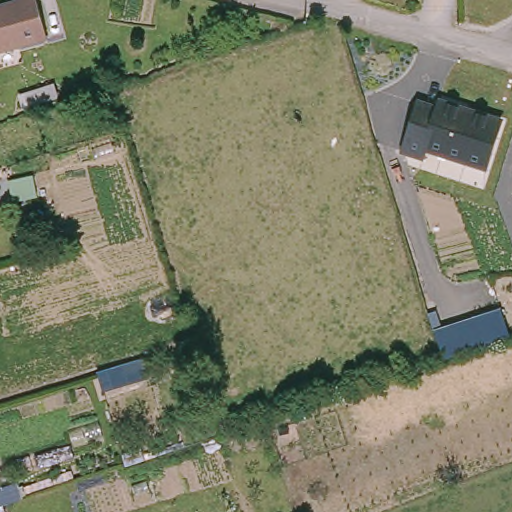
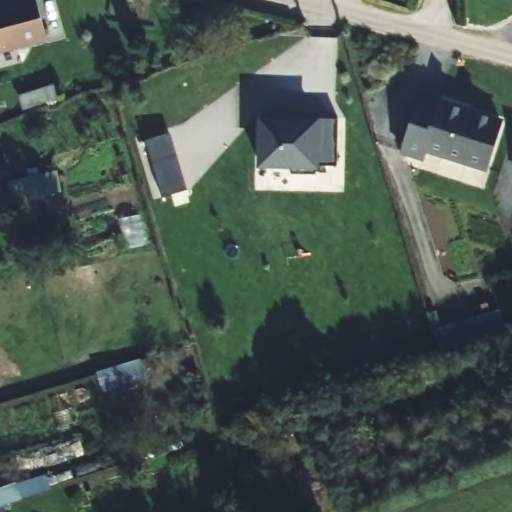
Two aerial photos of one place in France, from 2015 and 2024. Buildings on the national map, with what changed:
unchanged [(0,53),(0,7),(26,0),(37,0),(46,40),(0,53)]
unchanged [(19,110),(15,96),(49,86),(52,99),(19,110)]
unchanged [(428,101),(431,92),(503,120),(486,172),(427,152),(423,162),(398,154),(416,98),(428,101)]
new [(319,166),(319,169),(316,168),(315,173),(293,173),(295,168),(259,166),(259,115),(318,117),(337,118),(336,166),(319,166)]
new [(146,139),(172,131),(187,189),(162,197),(146,139)]
new [(62,191),(13,203),(7,180),(57,168),(62,191)]
unchanged [(510,340),(441,361),(426,313),(435,310),(440,324),(500,307),(510,340)]
unchanged [(143,357),(151,380),(102,394),(95,372),(143,357)]

